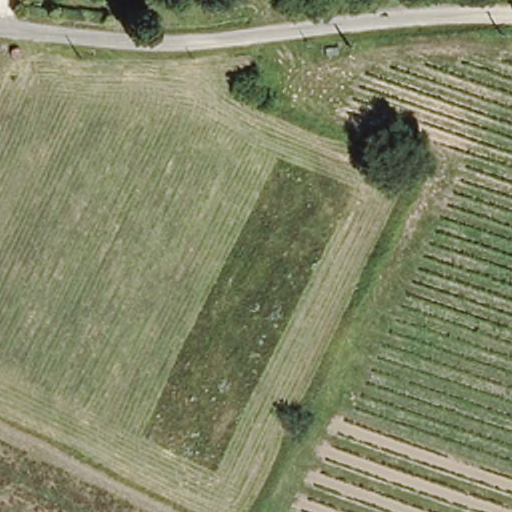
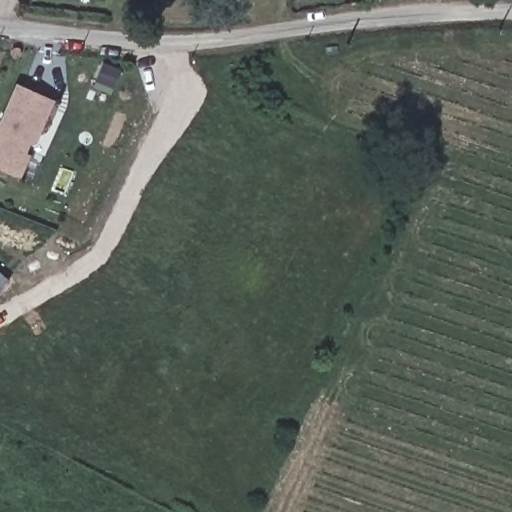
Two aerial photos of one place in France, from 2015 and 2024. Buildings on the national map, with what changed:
new [(20,178),(0,169),(0,118),(15,82),(54,99),(20,178)]
new [(0,289),(0,272),(9,280),(0,289)]

